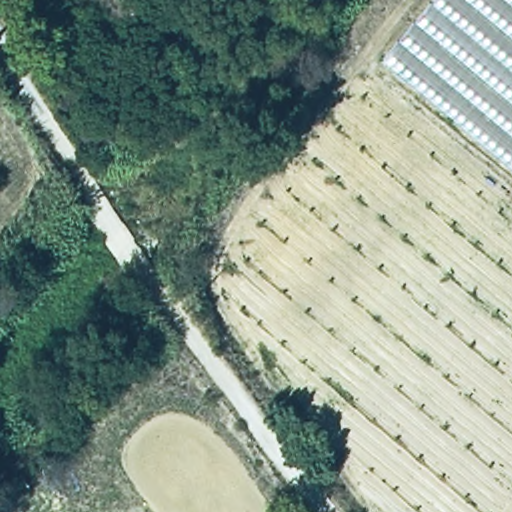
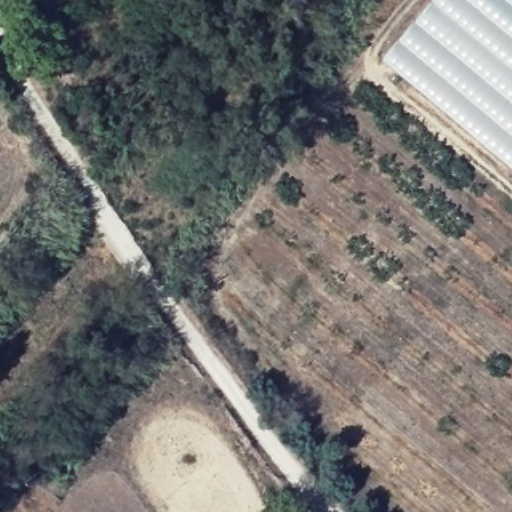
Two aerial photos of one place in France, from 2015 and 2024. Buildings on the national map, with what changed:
unchanged [(429,0),(512,0),(512,181),(373,62),(429,0)]

